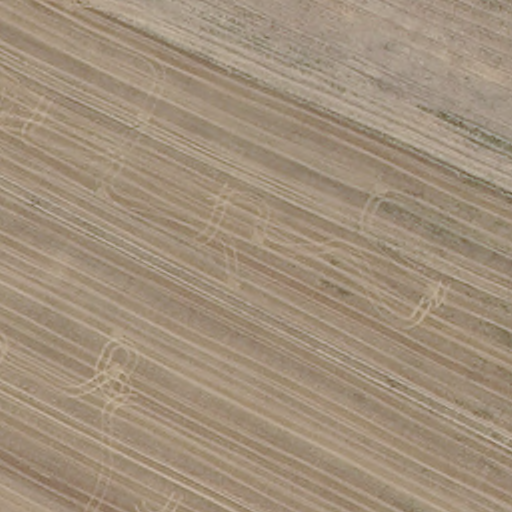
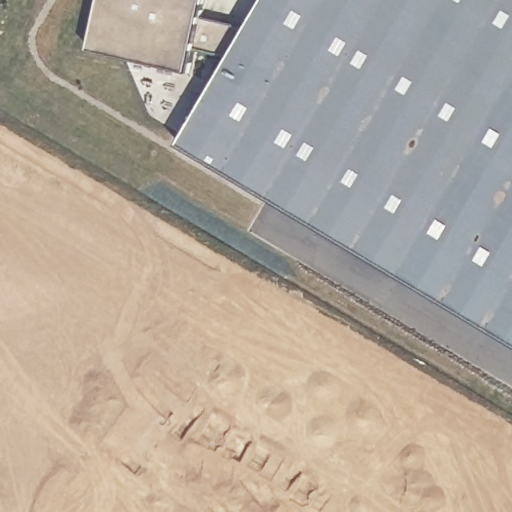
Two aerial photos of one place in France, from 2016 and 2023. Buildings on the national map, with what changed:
new [(512,102),(398,285),(177,151),(231,64),(195,55),(191,77),(87,56),(100,0),(209,0),(204,24),(252,34),(273,0),(512,0),(512,102)]

